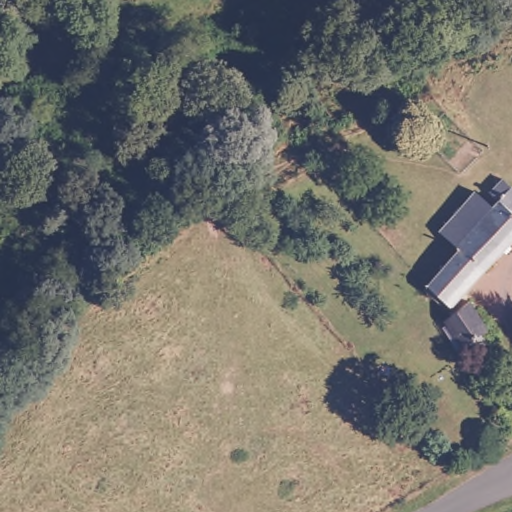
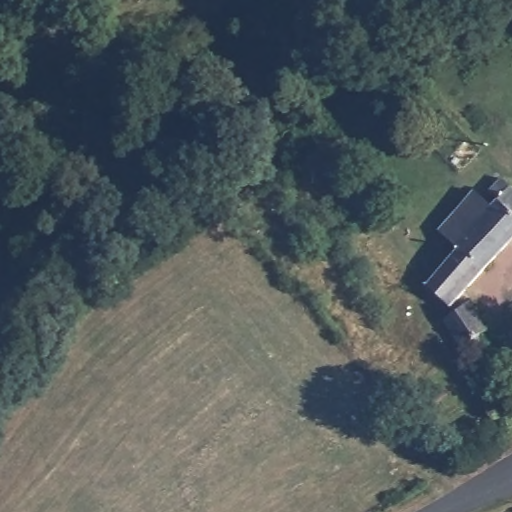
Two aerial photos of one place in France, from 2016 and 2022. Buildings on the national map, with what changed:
unchanged [(455,302),(432,280),(466,242),(460,238),(498,199),(502,194),(493,187),(507,176),(512,180),(512,240),(455,302)]
unchanged [(460,238),(443,224),(480,185),(498,199),(460,238)]
unchanged [(445,323),(456,315),(471,306),(486,331),(461,350),(445,323)]

